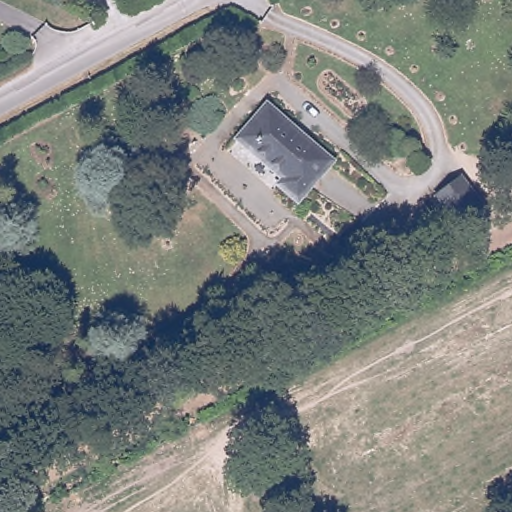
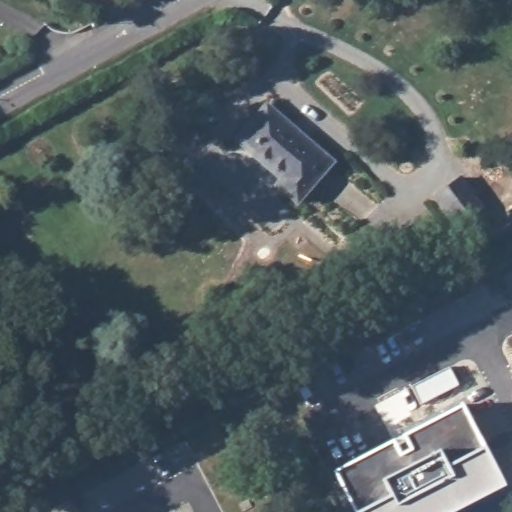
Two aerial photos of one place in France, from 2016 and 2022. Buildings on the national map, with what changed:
unchanged [(264,105),(329,165),(298,203),(277,185),(280,182),(234,140),(264,105)]
unchanged [(467,186),(491,216),(467,235),(442,205),(467,186)]
new [(449,367),(459,385),(421,405),(411,386),(449,367)]
new [(394,440),(396,444),(404,440),(403,435),(462,404),(504,486),(454,512),(355,512),(334,471),(394,440)]

